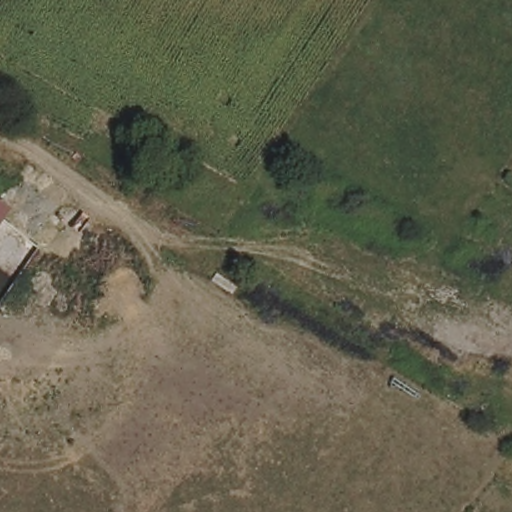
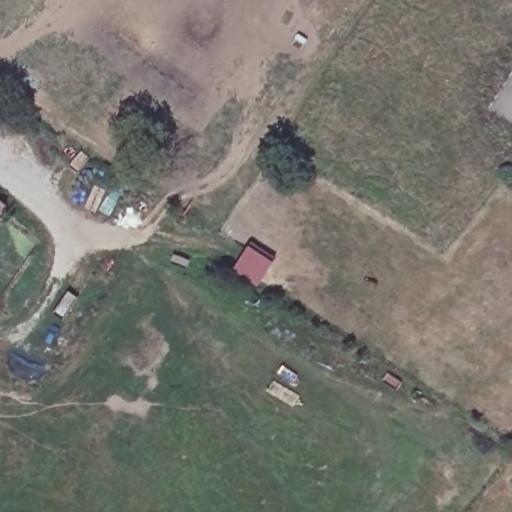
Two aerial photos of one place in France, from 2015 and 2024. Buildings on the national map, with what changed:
unchanged [(0,225),(0,212),(6,217),(0,225)]
new [(235,273),(250,247),(277,262),(261,288),(235,273)]

